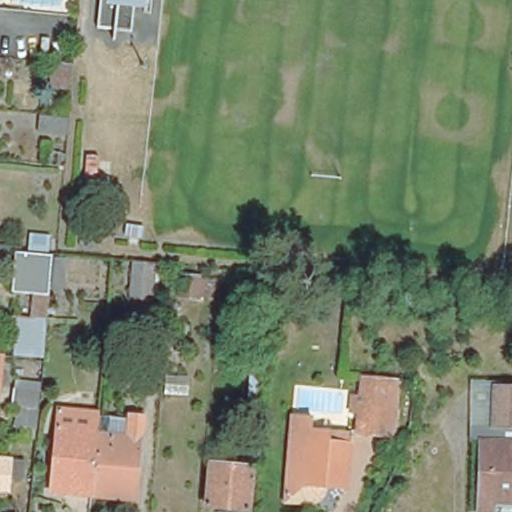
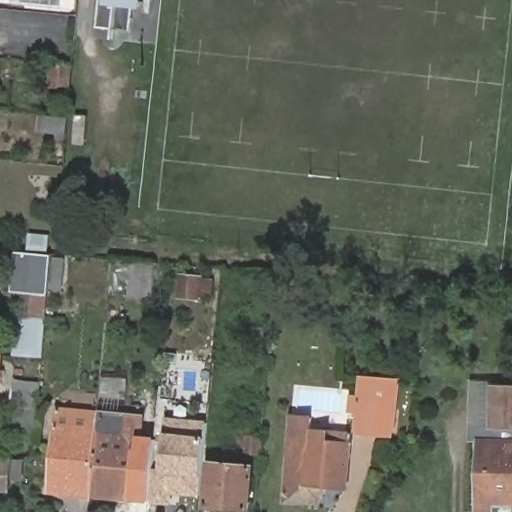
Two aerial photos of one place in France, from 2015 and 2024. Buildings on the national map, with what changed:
unchanged [(97,24),(100,0),(135,0),(131,27),(97,24)]
unchanged [(121,236),(123,222),(141,224),(140,238),(121,236)]
unchanged [(44,346),(6,344),(7,320),(24,321),(25,290),(4,289),(6,248),(64,252),(61,292),(48,290),(44,346)]
unchanged [(144,298),(128,295),(130,275),(145,277),(144,298)]
unchanged [(200,299),(179,297),(181,277),(201,279),(200,299)]
unchanged [(507,405),(490,404),(491,382),(491,365),(512,365),(512,492),(511,492),(511,483),(493,482),(493,492),(476,492),(478,418),(507,419),(507,405)]
unchanged [(356,378),(392,379),(390,412),(387,411),(386,429),(380,434),(352,432),(356,378)]
unchanged [(469,382),(470,382),(491,382),(490,404),(507,405),(507,419),(478,418),(467,418),(468,384),(469,382)]
unchanged [(11,392),(37,394),(35,411),(9,408),(11,392)]
unchanged [(95,433),(90,494),(50,490),(56,422),(87,424),(89,409),(98,410),(95,433)]
unchanged [(95,433),(125,435),(127,416),(144,418),(140,451),(136,451),(131,498),(90,494),(95,433)]
new [(205,437),(201,478),(200,497),(173,494),(172,505),(150,503),(131,502),(131,498),(136,451),(140,451),(141,436),(156,437),(155,467),(161,468),(165,433),(166,417),(206,421),(205,437)]
unchanged [(320,486),(320,492),(319,495),(317,498),(315,501),(311,503),(308,504),(304,506),(300,505),(280,504),(286,419),(301,420),(305,420),(305,439),(311,441),(312,433),(345,434),(341,482),(341,488),(320,486)]
unchanged [(11,456),(8,486),(0,485),(0,454),(11,456)]
unchanged [(210,464),(251,469),(247,511),(206,506),(210,464)]
unchanged [(511,483),(511,492),(512,492),(512,512),(465,512),(466,494),(476,492),(493,492),(493,482),(511,483)]

